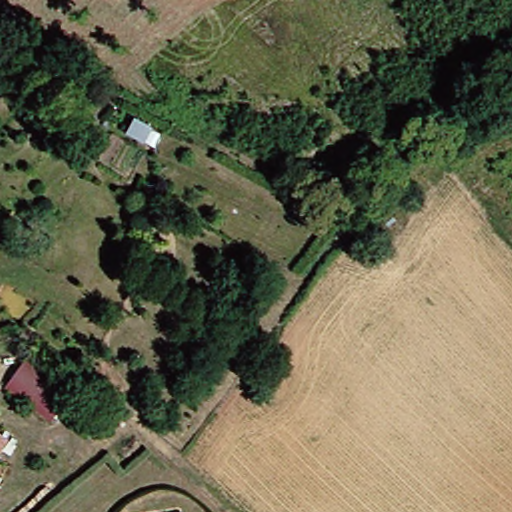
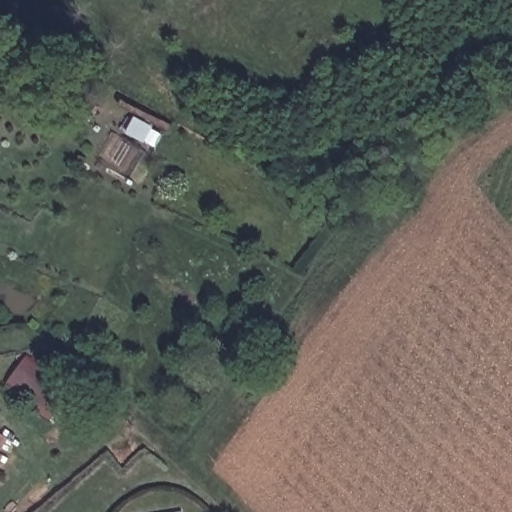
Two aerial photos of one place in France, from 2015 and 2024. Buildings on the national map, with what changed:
unchanged [(0,453),(0,440),(6,444),(0,453)]

